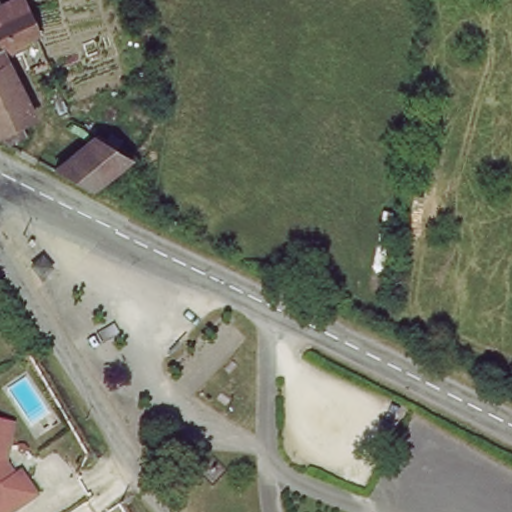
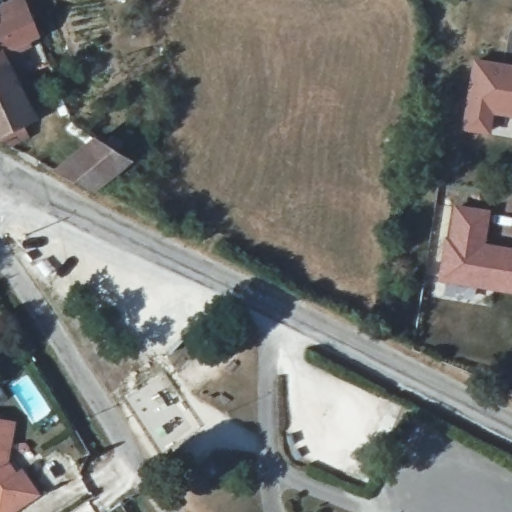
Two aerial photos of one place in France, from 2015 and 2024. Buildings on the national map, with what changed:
unchanged [(5,137),(0,135),(0,6),(3,4),(15,0),(30,0),(53,56),(36,63),(22,35),(5,42),(36,111),(25,114),(30,128),(5,137)]
new [(473,58),(512,64),(512,117),(494,115),(491,133),(462,130),(473,58)]
unchanged [(95,138),(127,157),(96,188),(95,189),(60,172),(95,138)]
new [(491,209),(486,243),(512,247),(512,292),(439,279),(445,237),(449,237),(454,205),(491,209)]
unchanged [(53,271),(45,279),(38,271),(46,263),(53,271)]
unchanged [(0,419),(18,421),(11,460),(41,496),(14,512),(0,512),(0,419)]

